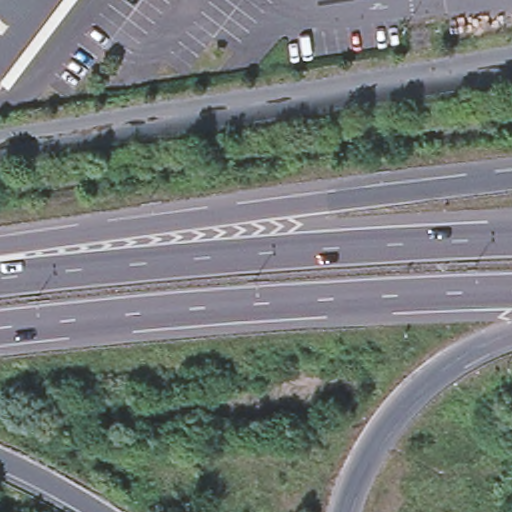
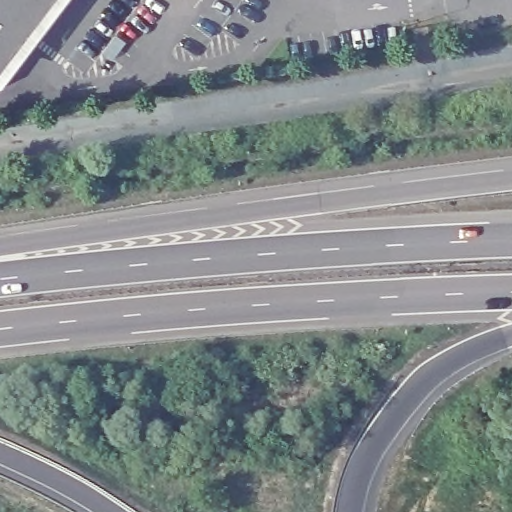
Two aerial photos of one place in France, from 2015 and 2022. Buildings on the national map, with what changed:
unchanged [(0,72),(0,0),(54,0),(0,72)]

